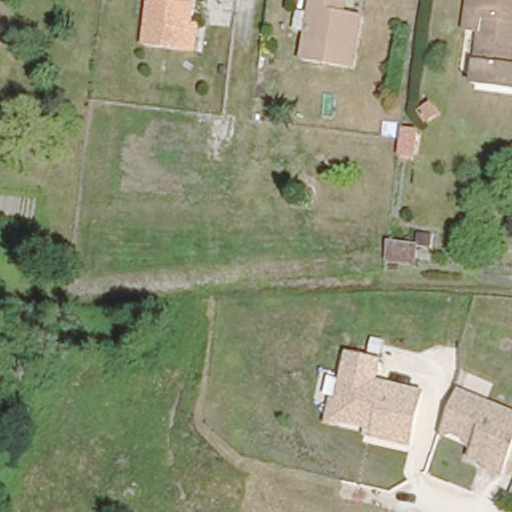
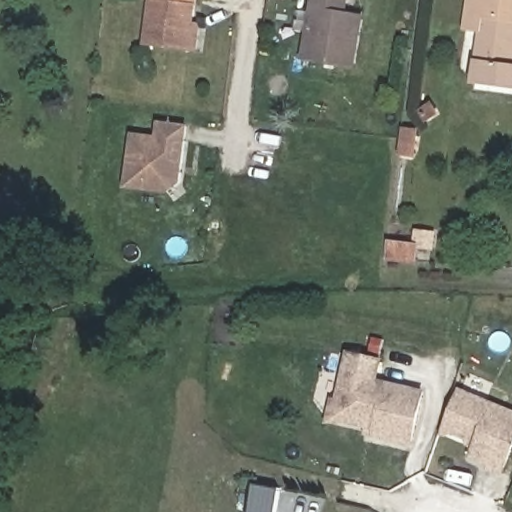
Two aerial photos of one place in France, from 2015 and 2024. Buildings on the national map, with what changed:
unchanged [(196,0),(193,18),(203,19),(201,47),(139,41),(145,0),(196,0)]
unchanged [(348,0),(348,6),(377,10),(370,65),(312,57),(320,0),(348,0)]
unchanged [(512,61),(512,86),(473,80),(479,27),(465,25),(468,0),(512,0),(512,38),(509,61),(512,61)]
new [(180,185),(164,194),(123,189),(130,132),(156,135),(157,121),(188,125),(180,185)]
unchanged [(436,230),(436,242),(417,241),(418,229),(436,230)]
unchanged [(392,263),(395,240),(417,241),(416,262),(410,262),(392,263)]
demolished [(422,246),(440,247),(440,260),(421,259),(422,246)]
unchanged [(358,425),(346,421),(344,430),(323,423),(331,396),(337,398),(350,352),(381,360),(375,381),(422,394),(408,446),(371,436),(356,432),(358,425)]
unchanged [(503,472),(488,465),(489,461),(485,460),(475,455),(481,440),(449,426),(465,390),(512,411),(512,452),(510,458),(503,472)]
new [(251,484),(278,490),(274,512),(247,512),(251,484)]

